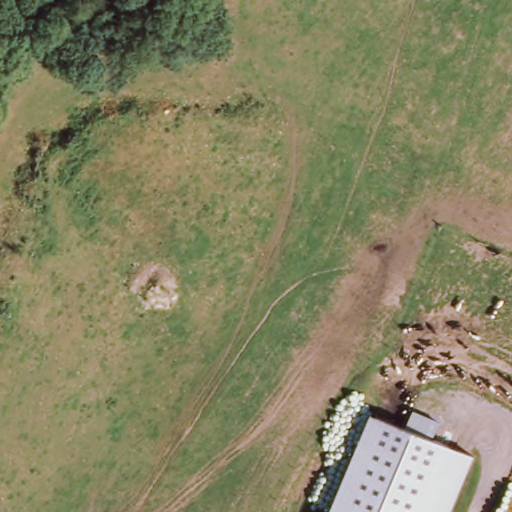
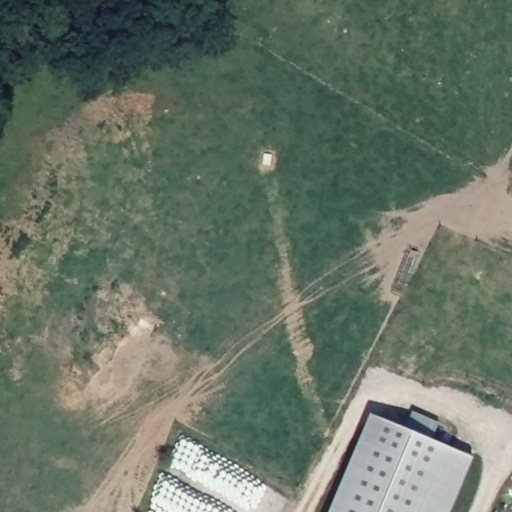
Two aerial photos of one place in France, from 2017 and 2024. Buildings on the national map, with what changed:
unchanged [(331,512),(370,415),(405,427),(413,410),(440,423),(430,438),(473,457),(451,512),(331,512)]

